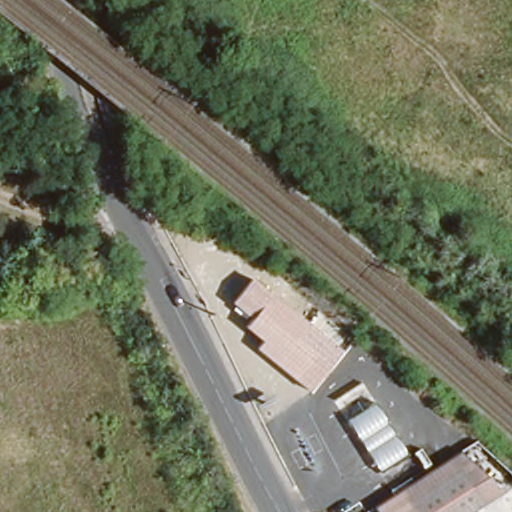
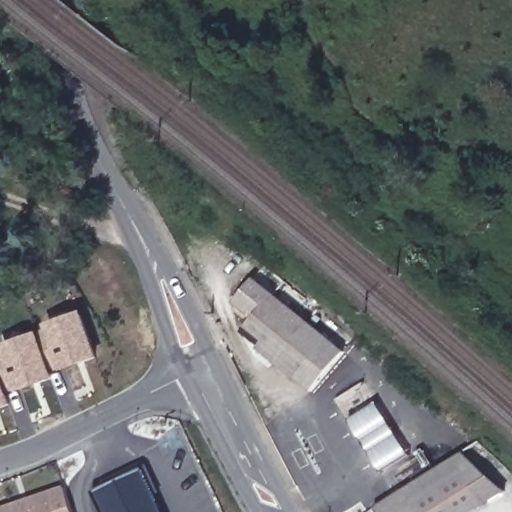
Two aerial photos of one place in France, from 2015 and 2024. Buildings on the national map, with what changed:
unchanged [(346,351),(313,393),(258,349),(266,340),(246,325),(249,319),(232,302),(253,277),(346,351)]
new [(9,393),(13,404),(0,408),(0,348),(2,347),(34,336),(35,339),(44,336),(40,327),(64,319),(80,314),(96,359),(53,374),(54,380),(9,393)]
new [(374,403),(408,456),(379,474),(345,421),(374,403)]
unchanged [(378,512),(374,506),(462,453),(505,494),(475,512),(378,512)]
new [(164,512),(101,512),(92,493),(144,468),(164,512)]
new [(74,512),(0,512),(0,507),(64,486),(74,512)]

